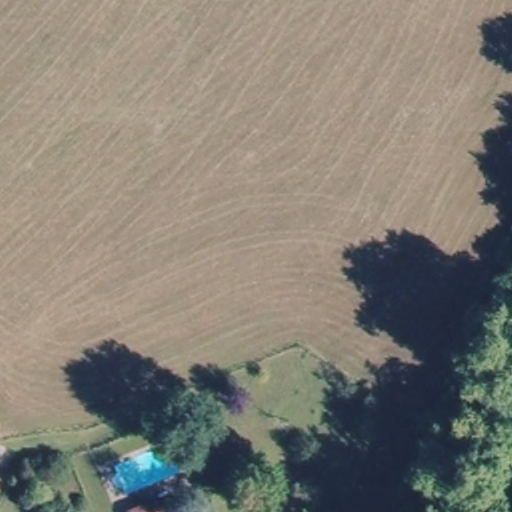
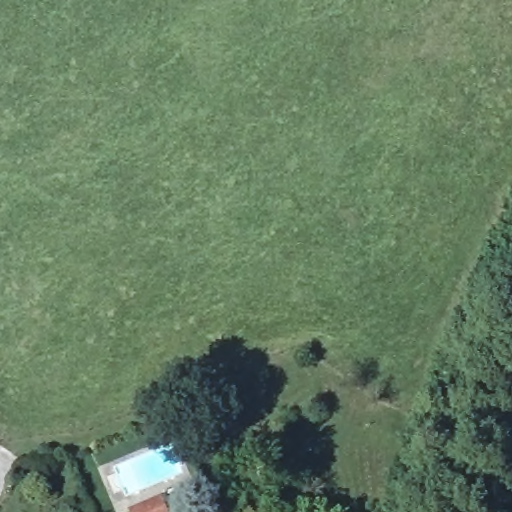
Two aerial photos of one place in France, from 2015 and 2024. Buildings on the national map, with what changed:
unchanged [(156,501),(161,512),(131,512),(130,512),(156,501)]

